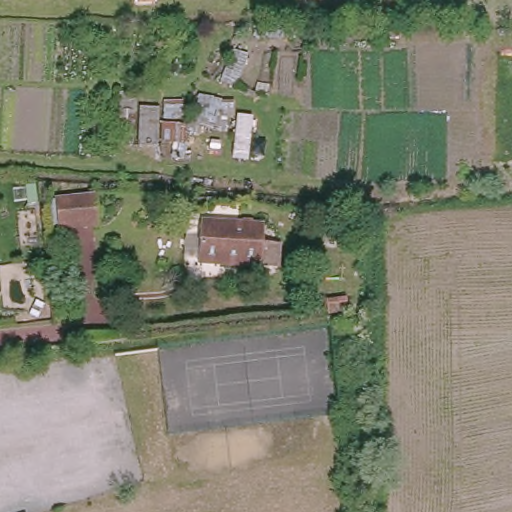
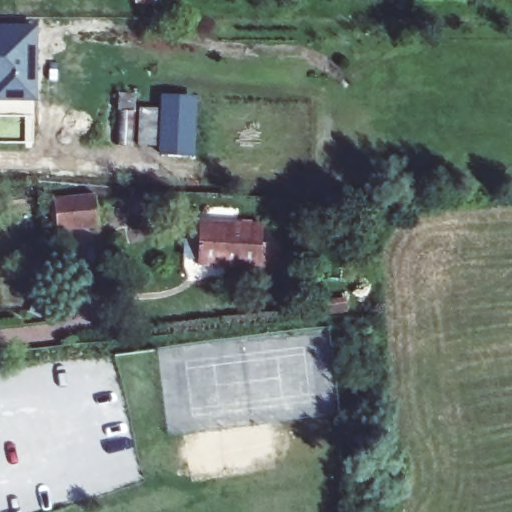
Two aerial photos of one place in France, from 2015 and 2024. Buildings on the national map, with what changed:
new [(37,102),(0,101),(0,24),(39,25),(37,102)]
unchanged [(130,95),(130,112),(136,112),(135,147),(118,147),(119,95),(130,95)]
new [(195,155),(159,154),(160,145),(137,145),(140,107),(161,108),(161,95),(198,97),(195,155)]
unchanged [(60,230),(57,200),(99,197),(100,227),(60,230)]
unchanged [(196,265),(197,222),(261,226),(260,247),(276,248),(276,270),(196,265)]

